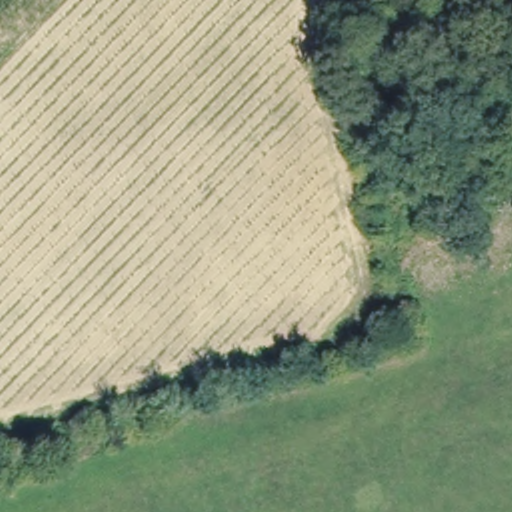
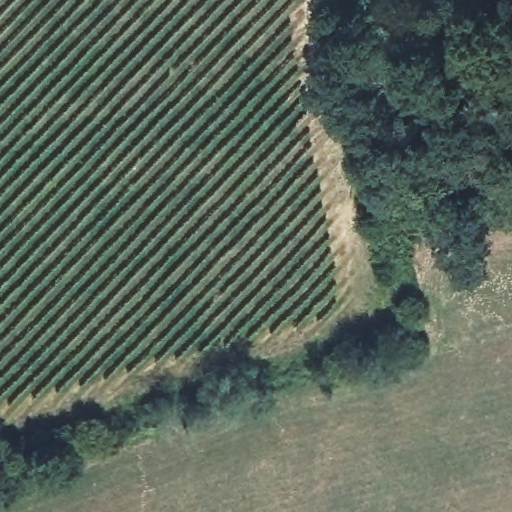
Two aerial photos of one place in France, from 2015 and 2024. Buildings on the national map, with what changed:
[]

